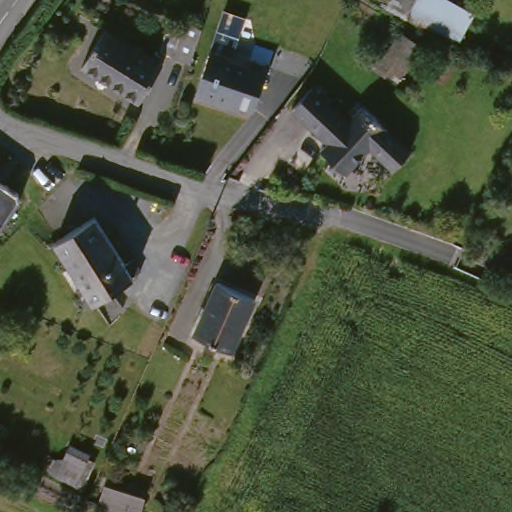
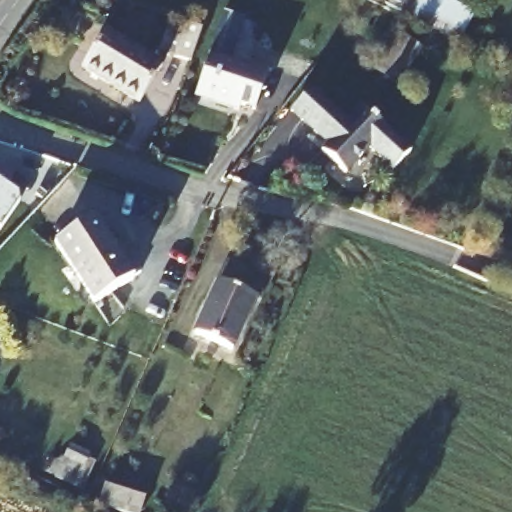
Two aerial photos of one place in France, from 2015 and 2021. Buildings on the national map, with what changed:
unchanged [(466,46),(385,11),(390,0),(455,0),(482,10),(466,46)]
unchanged [(184,24),(201,30),(189,65),(172,59),(184,24)]
unchanged [(113,31),(170,66),(147,104),(116,86),(89,70),(113,31)]
unchanged [(402,34),(422,49),(396,86),(375,72),(402,34)]
unchanged [(216,49),(255,61),(256,57),(275,62),(259,110),(245,106),(247,99),(205,86),(216,49)]
unchanged [(299,111),(321,89),(357,122),(372,107),(383,117),(418,153),(401,172),(375,148),(352,173),(328,152),(334,146),(299,111)]
unchanged [(0,223),(0,174),(11,181),(11,185),(19,190),(23,189),(36,198),(37,205),(17,234),(0,223)]
unchanged [(56,244),(98,216),(139,277),(97,305),(56,244)]
unchanged [(212,309),(223,284),(261,300),(240,350),(202,334),(212,309)]
unchanged [(107,455),(89,492),(57,480),(73,442),(107,455)]
unchanged [(141,497),(137,512),(118,512),(96,505),(102,485),(141,497)]

